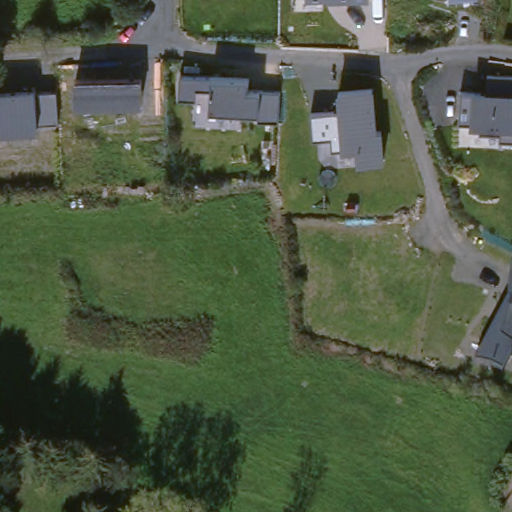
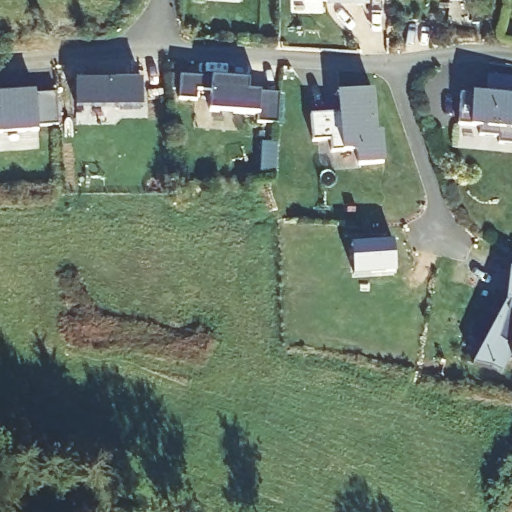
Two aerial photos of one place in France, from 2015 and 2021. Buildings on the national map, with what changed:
unchanged [(256,120),(255,111),(210,109),(211,89),(195,88),(195,98),(179,97),(180,75),(212,76),(248,78),(247,89),(263,91),(279,92),(278,122),(256,120)]
unchanged [(76,105),(75,78),(140,77),(142,104),(76,105)]
unchanged [(37,130),(0,133),(0,92),(37,89),(57,90),(59,118),(37,119),(37,130)]
unchanged [(498,145),(498,137),(480,135),(480,122),(470,121),(458,121),(460,89),(473,91),(512,94),(512,145),(498,145)]
unchanged [(357,164),(357,150),(342,149),(332,151),(330,138),(314,137),(312,116),(339,117),(338,92),(373,90),(377,132),(382,131),(383,164),(357,164)]
new [(395,269),(352,274),(350,241),(390,238),(395,269)]
unchanged [(509,356),(503,373),(474,364),(506,302),(508,270),(512,272),(512,357),(509,356)]

